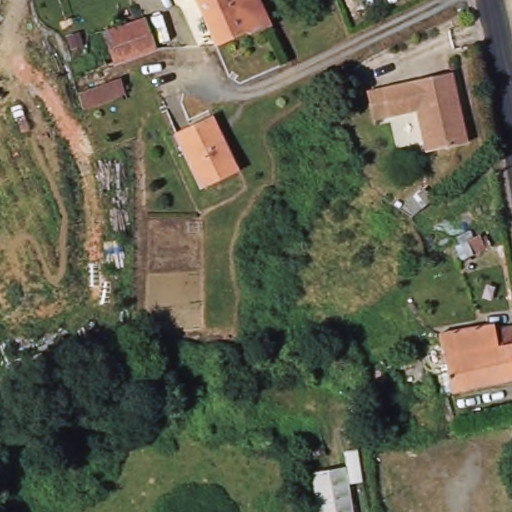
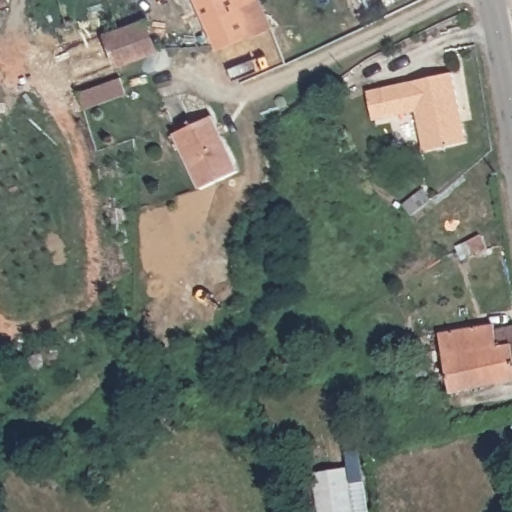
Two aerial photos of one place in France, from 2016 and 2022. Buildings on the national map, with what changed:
unchanged [(195,0),(261,0),(273,25),(251,34),(249,30),(214,44),(195,0)]
unchanged [(151,21),(162,51),(160,52),(121,67),(110,35),(151,21)]
unchanged [(412,113),(369,120),(364,91),(450,76),(462,147),(419,154),(412,113)]
unchanged [(124,80),(130,96),(79,115),(74,98),(124,80)]
unchanged [(239,173),(202,193),(172,135),(214,116),(239,173)]
unchanged [(490,232),(493,245),(480,255),(473,243),(490,232)]
unchanged [(512,330),(512,382),(456,394),(442,340),(495,328),(496,333),(512,330)]
unchanged [(456,402),(463,430),(447,434),(440,406),(456,402)]
unchanged [(346,468),(343,452),(356,449),(362,483),(350,485),(353,512),(316,512),(309,473),(346,468)]

